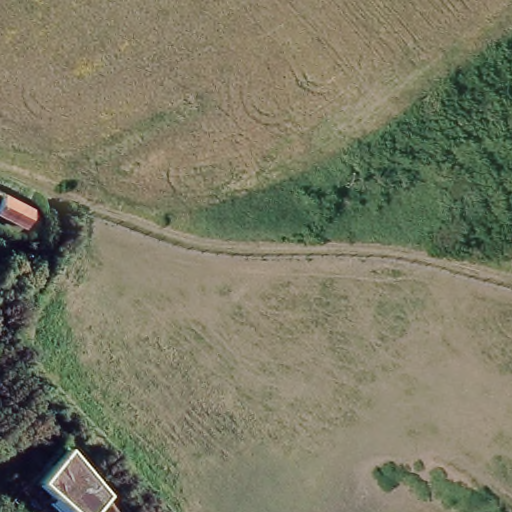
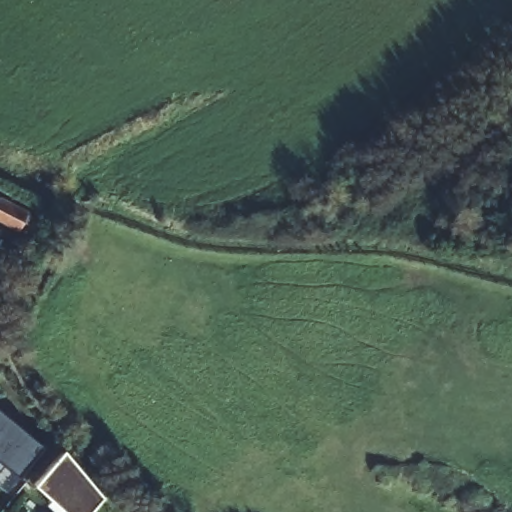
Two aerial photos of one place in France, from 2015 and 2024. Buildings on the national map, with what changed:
unchanged [(14,226),(0,216),(0,199),(22,215),(14,226)]
new [(19,474),(5,490),(0,486),(0,410),(43,444),(19,474)]
unchanged [(81,512),(64,512),(55,503),(47,511),(36,500),(42,493),(32,483),(62,449),(98,493),(81,512)]

